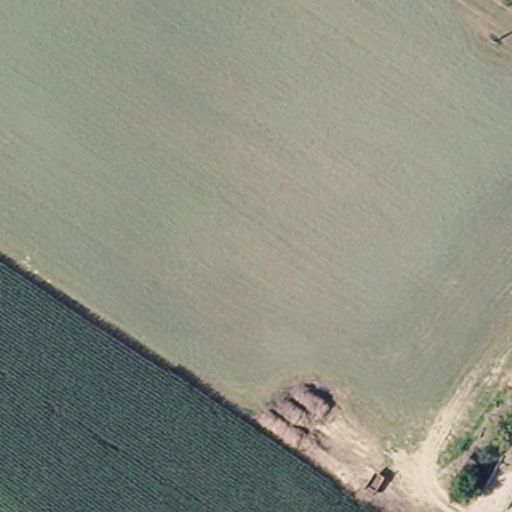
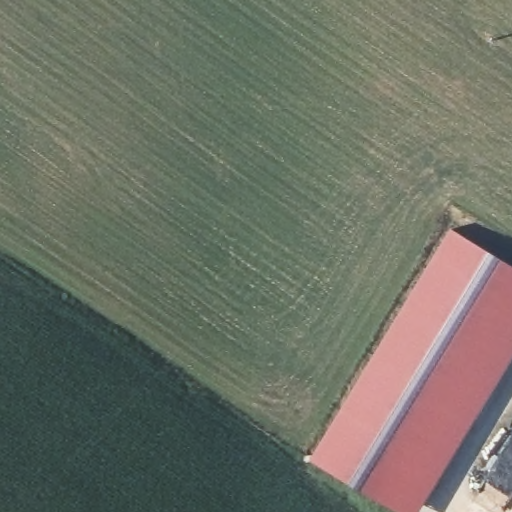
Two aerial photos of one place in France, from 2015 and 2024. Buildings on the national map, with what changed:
new [(398,512),(311,460),(450,231),(512,267),(512,356),(417,512),(398,512)]

